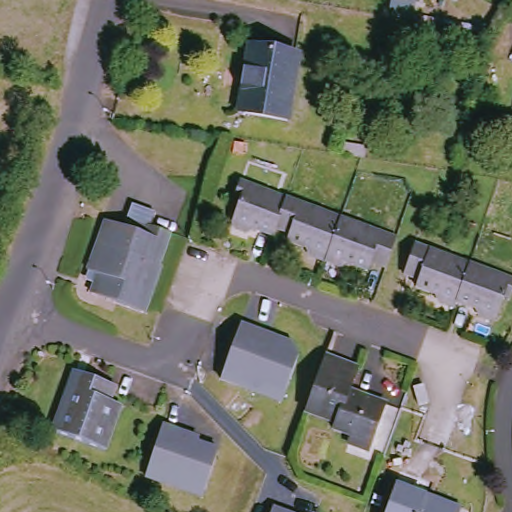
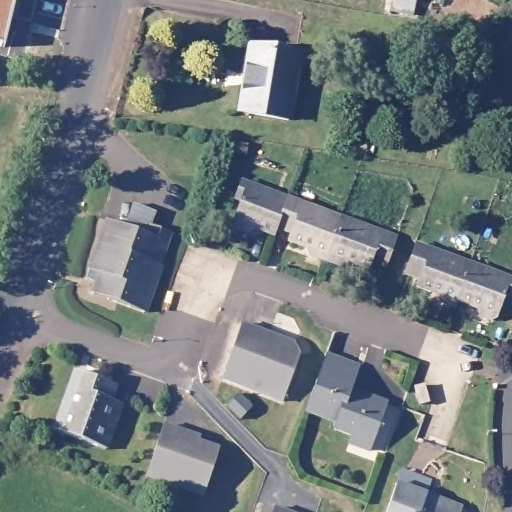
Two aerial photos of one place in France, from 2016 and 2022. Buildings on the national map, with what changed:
new [(0,41),(0,0),(13,0),(1,41),(0,41)]
unchanged [(393,9),(394,0),(419,0),(417,12),(393,9)]
unchanged [(237,85),(241,86),(248,47),(293,55),(281,117),(233,109),(237,85)]
unchanged [(273,225),(269,234),(247,222),(243,227),(231,219),(239,197),(233,192),(238,179),(284,195),(273,225)]
unchanged [(284,195),(341,216),(323,260),(308,254),(306,247),(288,239),(290,233),(273,225),(284,195)]
unchanged [(89,284),(80,280),(84,271),(104,221),(117,226),(125,205),(142,210),(138,222),(165,235),(154,264),(158,265),(141,313),(104,298),(86,291),(89,284)]
unchanged [(341,216),(392,236),(381,267),(365,261),(363,267),(343,260),(337,266),(323,260),(341,216)]
unchanged [(469,265),(456,303),(454,309),(435,301),(433,293),(415,285),(418,278),(402,271),(414,243),(469,265)]
unchanged [(512,281),(507,294),(506,293),(504,293),(503,295),(503,296),(500,295),(488,322),(473,316),(475,310),(456,303),(469,265),(512,281)]
unchanged [(279,339),(296,345),(301,356),(283,403),(222,379),(243,325),(271,335),(279,339)]
unchanged [(354,364),(345,384),(383,401),(366,446),(346,438),(348,433),(329,426),(333,419),(301,405),(321,348),(354,364)]
unchanged [(105,404),(117,408),(101,451),(47,430),(63,387),(70,370),(79,373),(112,387),(105,404)]
unchanged [(419,410),(417,399),(414,400),(413,392),(423,390),(427,408),(419,410)]
unchanged [(181,434),(199,441),(198,445),(218,453),(202,500),(145,479),(147,473),(163,428),(181,434)]
unchanged [(423,494),(434,498),(458,507),(456,512),(382,512),(393,482),(423,494)]

